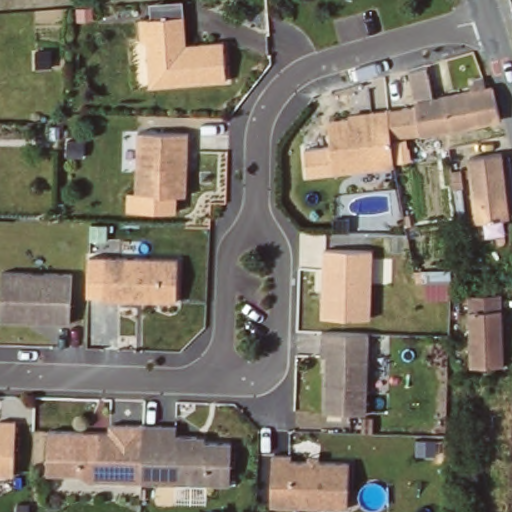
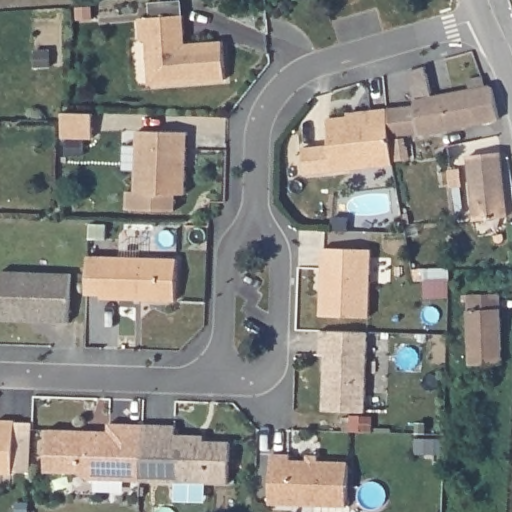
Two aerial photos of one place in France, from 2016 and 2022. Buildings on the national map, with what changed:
unchanged [(184,18),(187,46),(223,43),(226,80),(153,86),(147,43),(141,43),(139,21),(184,18)]
unchanged [(427,138),(406,75),(425,69),(435,97),(441,94),(442,97),(452,131),(427,138)]
unchanged [(476,86),(474,77),(484,73),(488,84),(496,81),(503,113),(481,121),(452,131),(442,97),(472,88),(476,86)]
unchanged [(393,163),(333,169),(327,117),(370,112),(369,109),(386,107),(393,163)]
new [(64,112),(94,113),(93,137),(63,136),(64,112)]
unchanged [(190,136),(189,196),(140,195),(141,135),(190,136)]
unchanged [(502,150),(509,214),(476,217),(470,154),(502,150)]
unchanged [(374,253),(373,319),(325,318),(326,252),(374,253)]
unchanged [(176,300),(104,298),(105,258),(177,259),(176,300)]
unchanged [(73,275),(72,322),(55,322),(55,319),(39,318),(39,322),(3,321),(4,273),(73,275)]
unchanged [(509,292),(508,362),(471,362),(471,293),(509,292)]
unchanged [(366,333),(365,411),(324,410),(325,357),(319,356),(320,349),(320,332),(323,332),(366,333)]
unchanged [(15,471),(0,471),(0,419),(16,419),(15,471)]
unchanged [(89,480),(80,474),(47,473),(48,432),(80,432),(108,433),(108,425),(141,426),(140,481),(89,480)]
unchanged [(141,426),(174,427),(174,435),(194,436),(194,441),(229,442),(229,483),(140,481),(141,426)]
unchanged [(292,464),(309,464),(309,459),(319,459),(319,464),(349,465),(350,509),(273,507),(274,458),(292,459),(292,464)]

